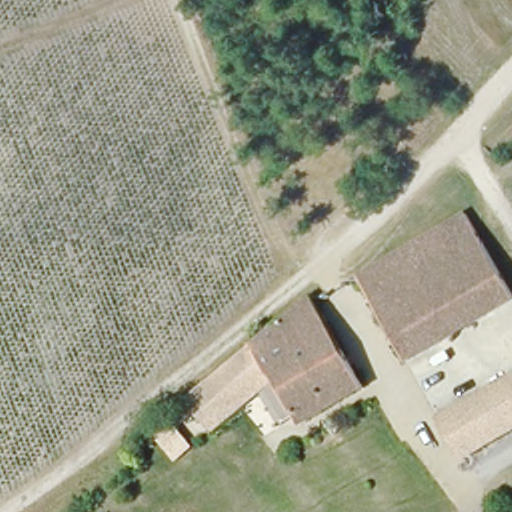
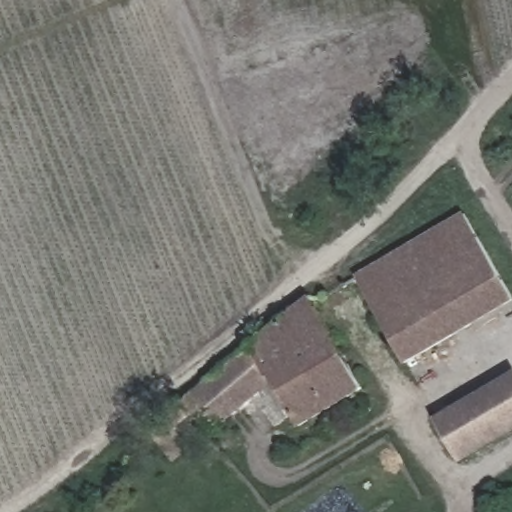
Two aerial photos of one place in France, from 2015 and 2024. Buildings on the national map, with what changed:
unchanged [(512,305),(409,366),(360,279),(466,215),(512,292),(512,305)]
unchanged [(196,412),(178,428),(168,416),(314,295),(365,387),(300,425),(275,379),(213,429),(196,412)]
unchanged [(464,462),(441,420),(512,381),(512,434),(472,457),(464,462)]

